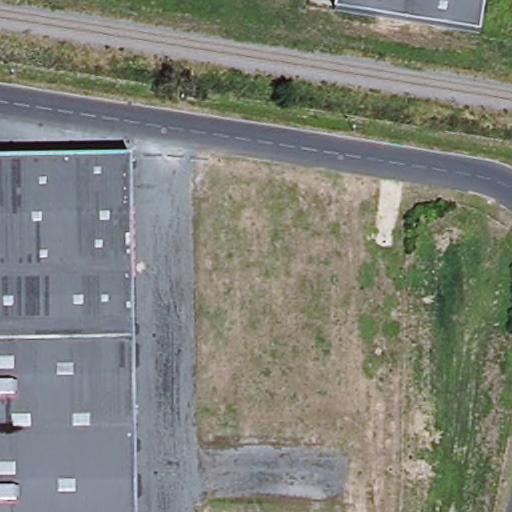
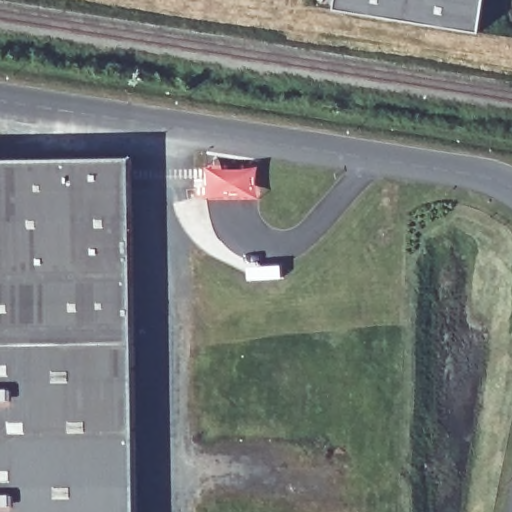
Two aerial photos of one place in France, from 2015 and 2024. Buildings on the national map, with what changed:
unchanged [(479,32),(336,8),(337,0),(484,0),(479,32)]
unchanged [(132,161),(139,512),(0,512),(0,163),(132,161)]
new [(261,196),(208,198),(208,168),(256,167),(261,196)]

